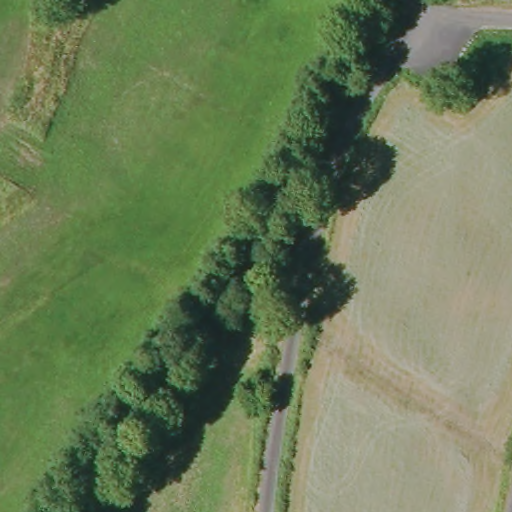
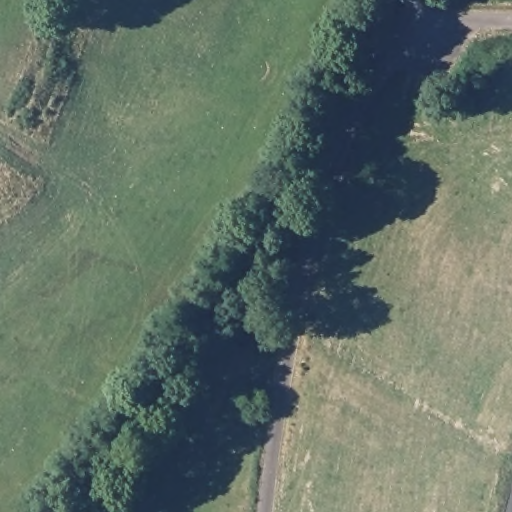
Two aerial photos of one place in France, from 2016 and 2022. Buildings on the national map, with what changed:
unchanged [(452,51),(435,69),(415,45),(430,31),(452,51)]

